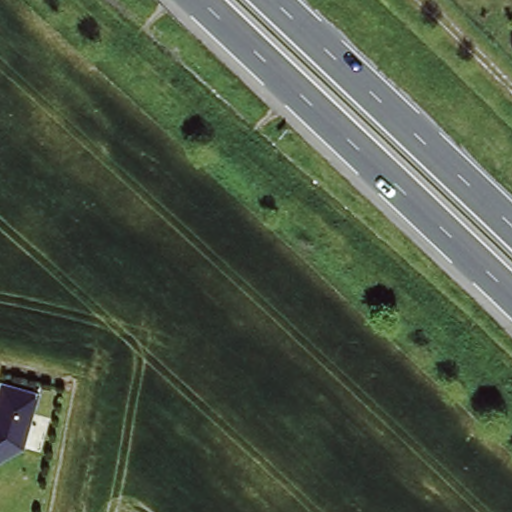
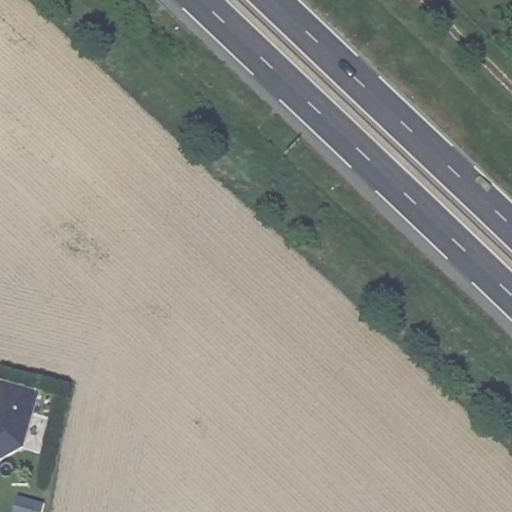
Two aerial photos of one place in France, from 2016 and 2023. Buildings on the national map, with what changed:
unchanged [(37,390),(23,446),(0,458),(0,380),(37,390)]

